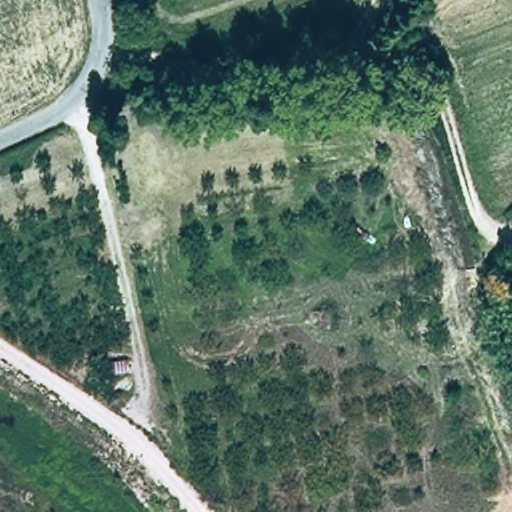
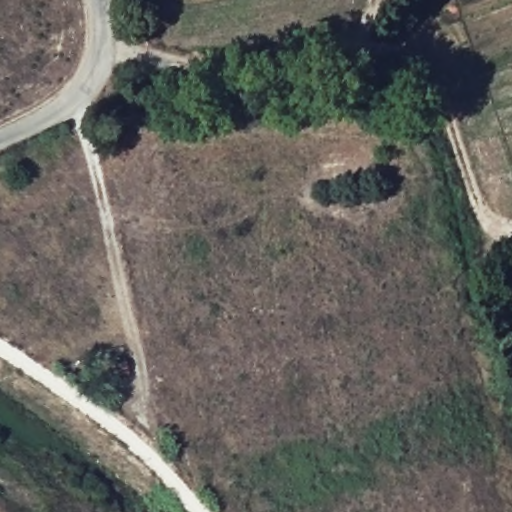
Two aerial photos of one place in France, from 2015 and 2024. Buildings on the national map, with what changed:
unchanged [(128,374),(103,377),(102,364),(127,361),(128,374)]

